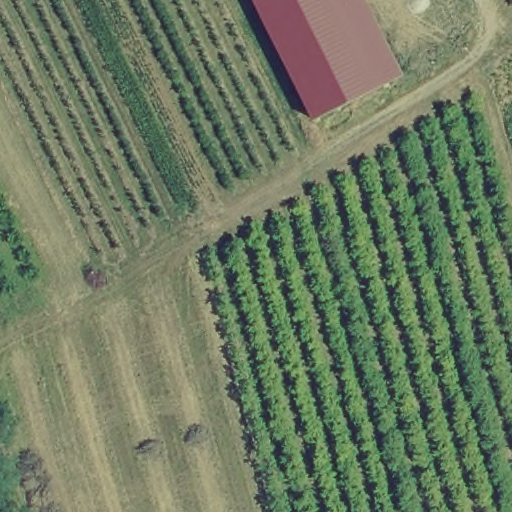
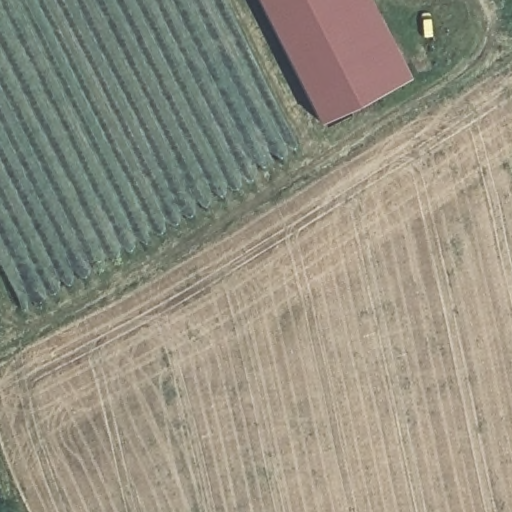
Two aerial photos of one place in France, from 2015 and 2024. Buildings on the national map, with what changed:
unchanged [(408,74),(315,119),(256,0),(371,0),(408,74)]

